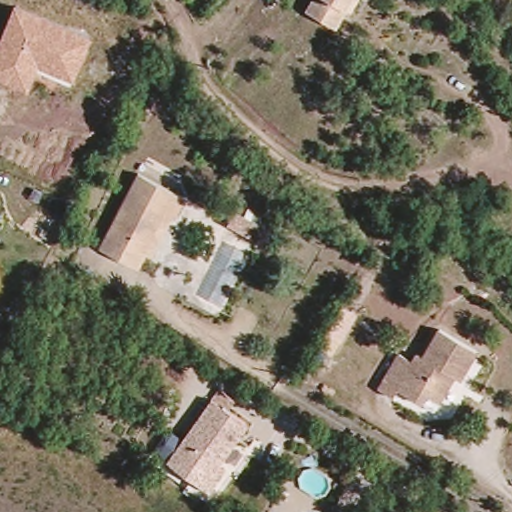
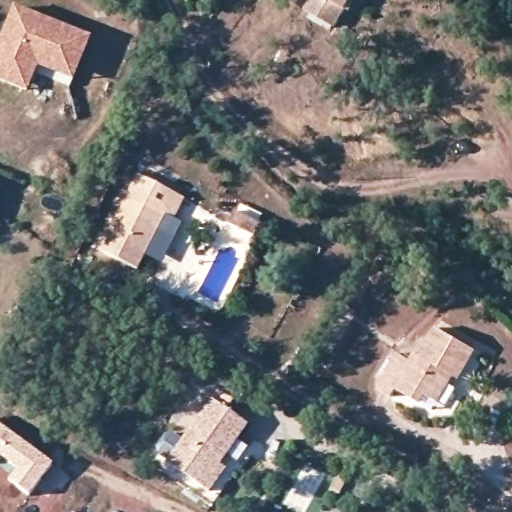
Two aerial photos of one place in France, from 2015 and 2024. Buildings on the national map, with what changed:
unchanged [(305,13),(311,0),(351,0),(337,29),(305,13)]
unchanged [(0,39),(14,6),(91,37),(72,80),(38,66),(27,91),(0,80),(0,39)]
unchanged [(141,265),(102,247),(137,172),(184,194),(177,208),(159,250),(151,246),(141,265)]
unchanged [(262,226),(256,239),(228,225),(235,212),(262,226)]
unchanged [(324,302),(339,310),(323,338),(309,330),(324,302)]
unchanged [(419,397),(412,404),(390,392),(383,399),(371,391),(389,357),(405,364),(409,354),(417,359),(434,330),(471,350),(454,380),(447,376),(431,404),(419,397)]
unchanged [(218,478),(207,496),(163,470),(210,394),(226,404),(220,413),(242,426),(233,440),(216,467),(222,471),(218,478)]
new [(28,496),(6,478),(15,468),(0,457),(0,423),(54,464),(28,496)]

